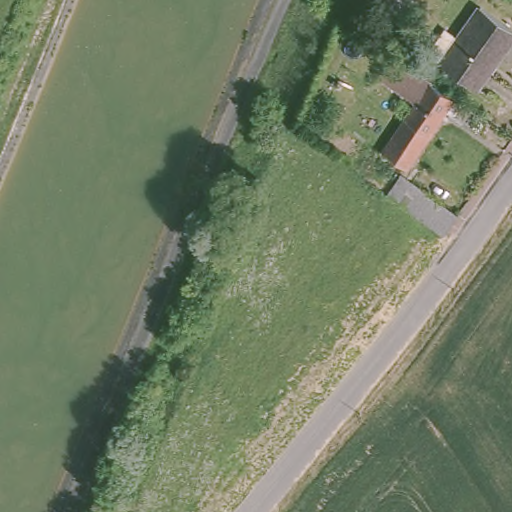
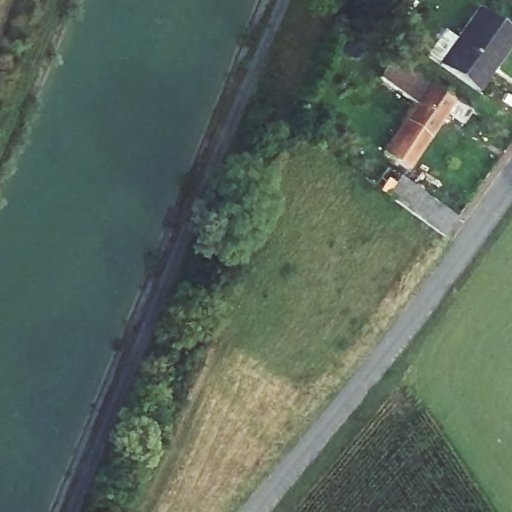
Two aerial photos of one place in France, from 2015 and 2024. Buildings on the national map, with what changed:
unchanged [(387,12),(370,0),(395,0),(387,12)]
unchanged [(512,33),(512,35),(473,90),(440,66),(478,10),(512,33)]
unchanged [(383,73),(399,51),(433,75),(435,76),(437,78),(435,80),(422,100),(383,73)]
unchanged [(435,80),(458,97),(461,95),(482,110),(473,123),(459,113),(453,120),(445,115),(410,164),(388,147),(422,100),(435,80)]
unchanged [(405,171),(462,212),(448,231),(392,190),(405,171)]

